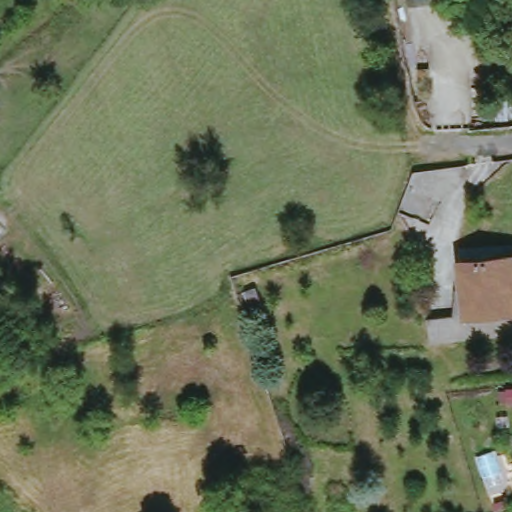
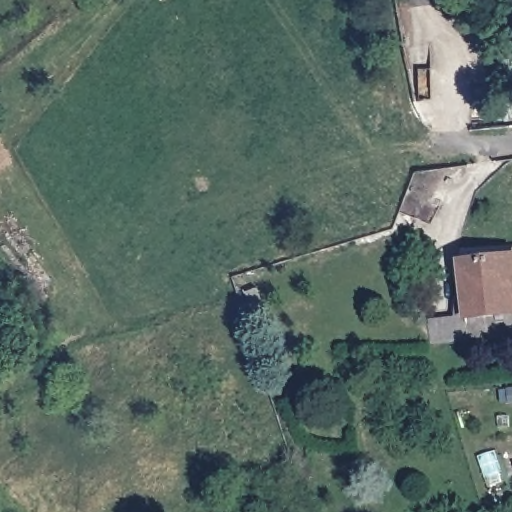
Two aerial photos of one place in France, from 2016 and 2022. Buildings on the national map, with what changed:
unchanged [(460,272),(512,267),(512,323),(467,327),(460,272)]
unchanged [(263,307),(253,311),(247,291),(256,288),(263,307)]
unchanged [(457,354),(431,357),(428,331),(454,328),(457,354)]

